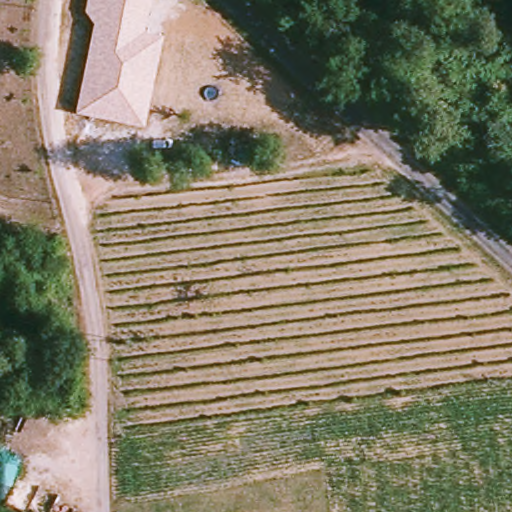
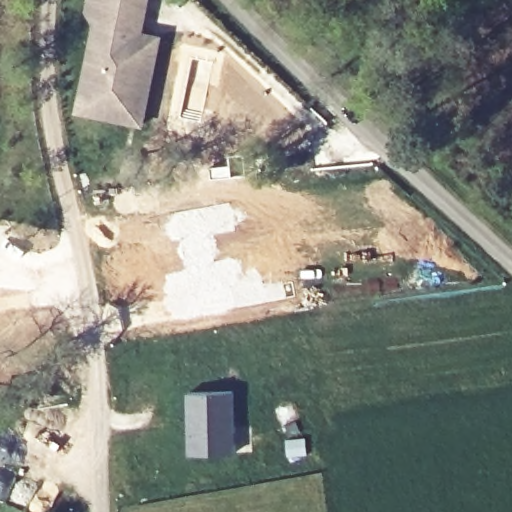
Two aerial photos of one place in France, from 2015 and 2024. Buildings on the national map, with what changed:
unchanged [(145,31),(163,35),(145,126),(74,111),(93,21),(85,11),(88,0),(151,0),(145,31)]
new [(235,391),(236,450),(189,451),(188,393),(235,391)]

